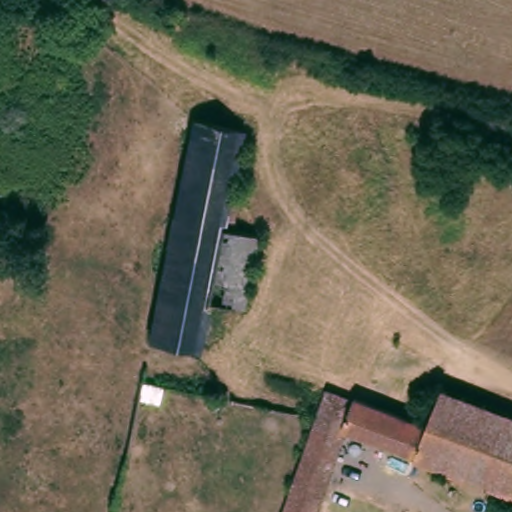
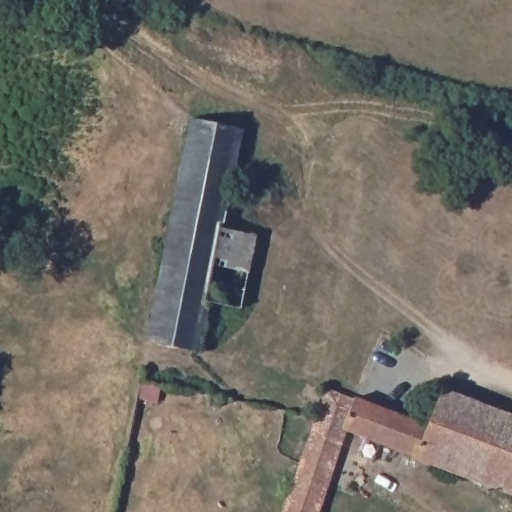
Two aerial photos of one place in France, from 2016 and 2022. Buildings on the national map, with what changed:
unchanged [(192,118),(240,129),(225,198),(236,202),(232,222),(220,221),(219,226),(249,236),(231,306),(200,302),(187,351),(140,338),(169,217),(192,118)]
unchanged [(322,395),(327,398),(338,403),(351,404),(426,432),(415,463),(341,435),(311,512),(277,512),(312,421),(322,395)]
unchanged [(426,432),(437,399),(506,425),(483,488),(415,463),(426,432)]
unchanged [(506,425),(512,427),(512,498),(483,488),(506,425)]

